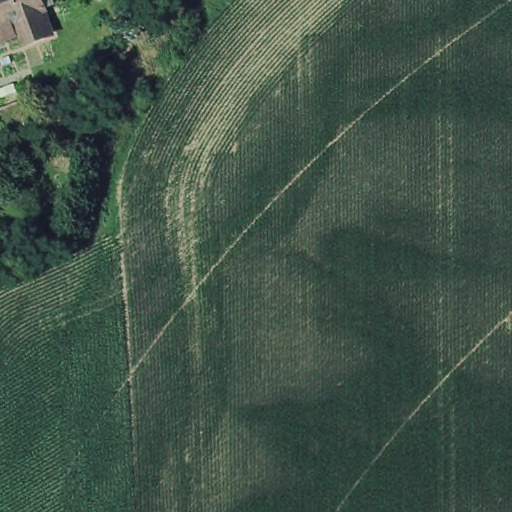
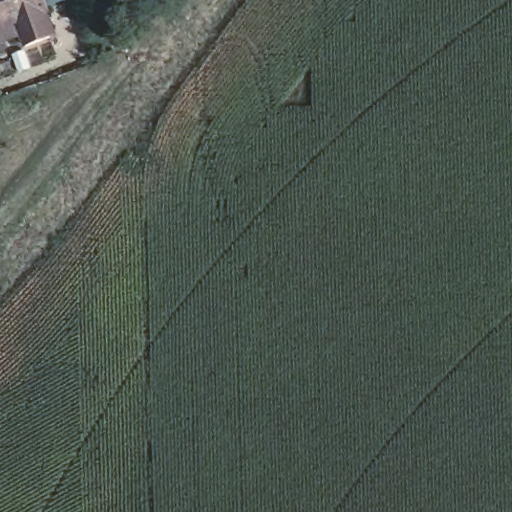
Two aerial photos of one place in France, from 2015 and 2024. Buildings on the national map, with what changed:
unchanged [(22,52),(13,27),(0,32),(0,0),(40,0),(45,15),(43,16),(50,34),(46,43),(22,52)]

